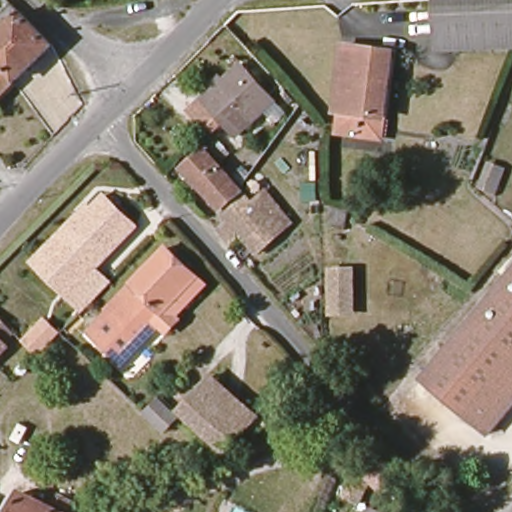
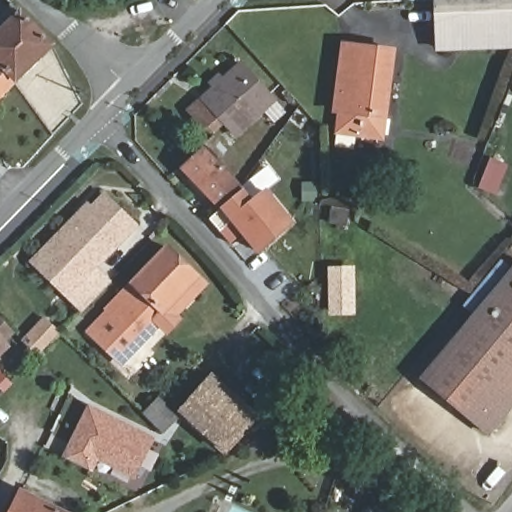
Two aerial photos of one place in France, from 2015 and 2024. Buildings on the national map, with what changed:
unchanged [(433,0),(512,0),(512,47),(435,49),(433,0)]
unchanged [(13,85),(0,71),(0,20),(11,9),(50,50),(13,85)]
unchanged [(393,53),(385,116),(338,109),(346,46),(393,53)]
unchanged [(278,103),(240,138),(223,119),(212,129),(195,111),(245,66),(278,103)]
unchanged [(11,88),(0,98),(0,76),(11,88)]
unchanged [(219,229),(227,220),(183,174),(206,149),(264,214),(232,244),(219,229)]
unchanged [(507,165),(495,194),(477,187),(489,159),(507,165)]
unchanged [(37,269),(62,243),(81,224),(90,215),(105,200),(136,231),(75,294),(68,299),(37,269)]
unchanged [(292,222),(265,248),(250,234),(277,207),(292,222)]
unchanged [(341,211),(340,232),(326,232),(328,210),(341,211)]
unchanged [(176,315),(179,318),(162,337),(154,329),(120,364),(88,334),(107,313),(105,310),(164,249),(202,285),(176,315)]
unchanged [(347,273),(355,273),(354,320),(331,321),(330,274),(335,274),(337,258),(347,257),(347,273)]
unchanged [(421,384),(512,275),(512,410),(487,440),(421,384)]
unchanged [(24,342),(47,318),(62,333),(40,356),(24,342)]
unchanged [(6,333),(11,338),(0,349),(0,326),(6,333)]
unchanged [(248,444),(242,438),(232,449),(230,449),(229,449),(183,412),(211,377),(270,426),(248,444)]
new [(134,479),(99,462),(93,473),(62,457),(89,403),(155,437),(134,479)]
unchanged [(402,477),(409,486),(393,504),(371,484),(360,505),(345,498),(367,445),(402,477)]
unchanged [(50,507),(55,496),(71,504),(67,512),(7,512),(17,492),(50,507)]

